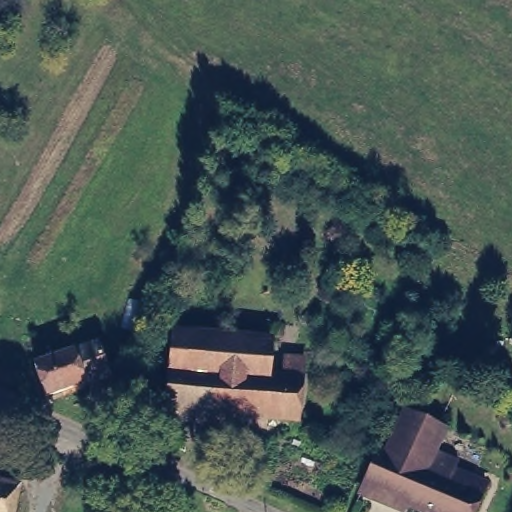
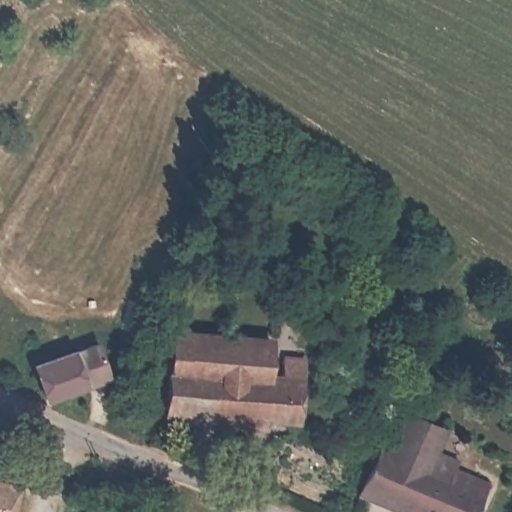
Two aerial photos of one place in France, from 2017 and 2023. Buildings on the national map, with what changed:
unchanged [(242,329),(274,331),(273,385),(304,385),(304,427),(171,420),(173,344),(179,344),(179,329),(203,330),(202,345),(243,345),(242,329)]
unchanged [(57,400),(46,372),(86,360),(95,385),(57,400)]
unchanged [(386,449),(399,420),(407,405),(441,421),(456,429),(442,464),(450,468),(445,476),(477,491),(469,512),(401,512),(359,494),(378,446),(386,449)]
unchanged [(18,512),(0,512),(0,481),(23,486),(18,512)]

